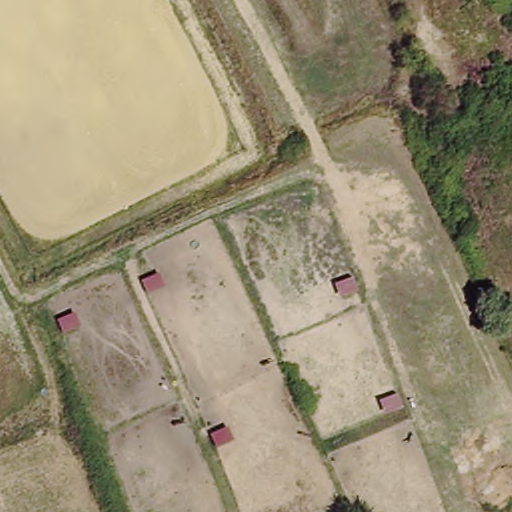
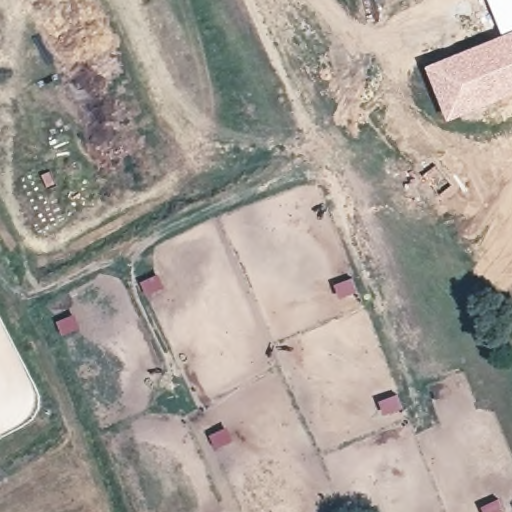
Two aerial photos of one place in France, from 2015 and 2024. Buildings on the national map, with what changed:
new [(501,34),(487,0),(512,0),(512,29),(501,34)]
new [(501,34),(512,29),(512,95),(446,121),(424,66),(501,34)]

